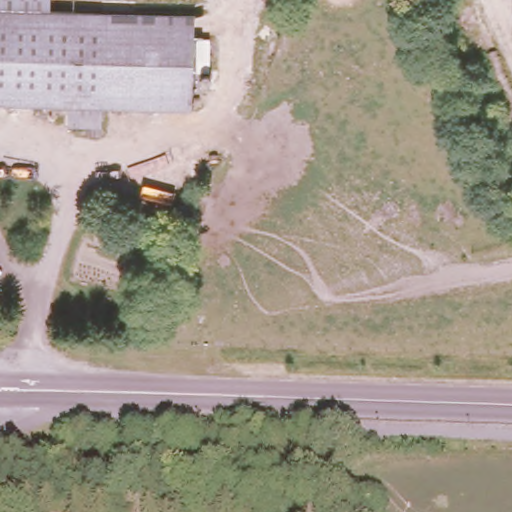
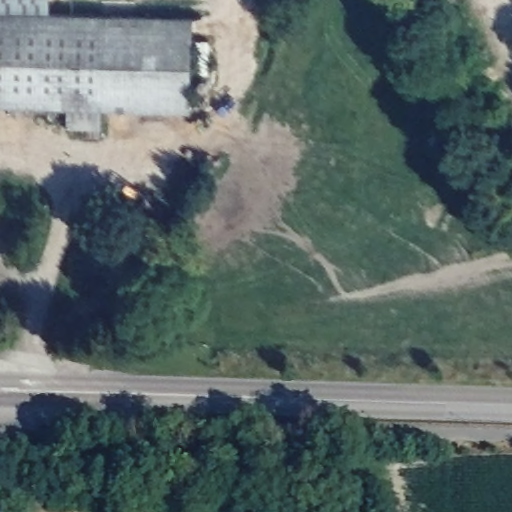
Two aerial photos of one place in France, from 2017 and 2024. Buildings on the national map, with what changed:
unchanged [(197,12),(195,108),(0,103),(0,0),(52,0),(52,8),(197,12)]

